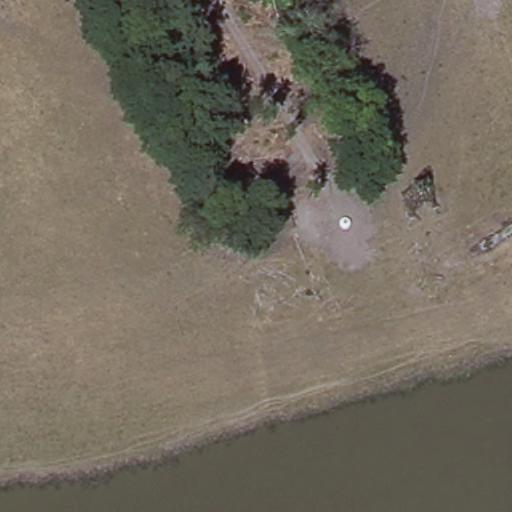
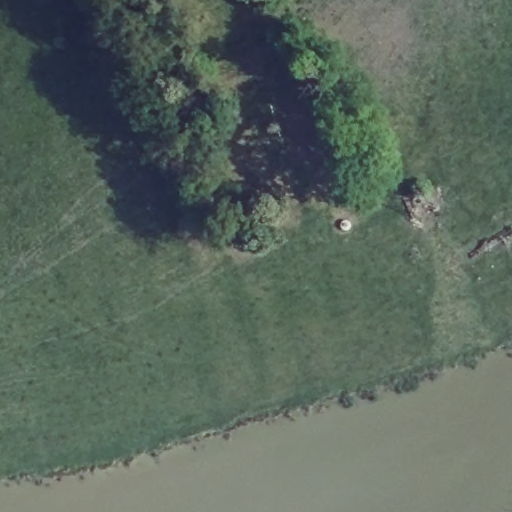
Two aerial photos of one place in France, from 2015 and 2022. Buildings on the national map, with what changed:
[]

